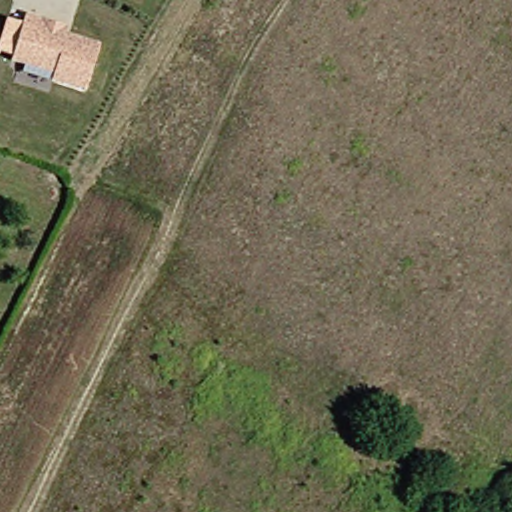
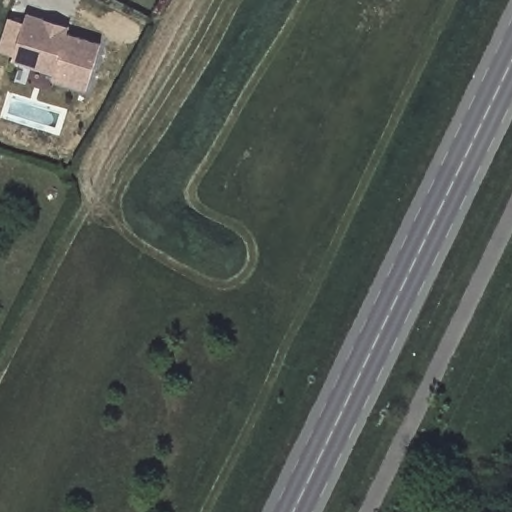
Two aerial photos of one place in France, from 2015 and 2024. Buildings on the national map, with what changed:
unchanged [(86,90),(52,79),(54,73),(12,59),(27,13),(44,18),(69,26),(67,33),(101,43),(86,90)]

